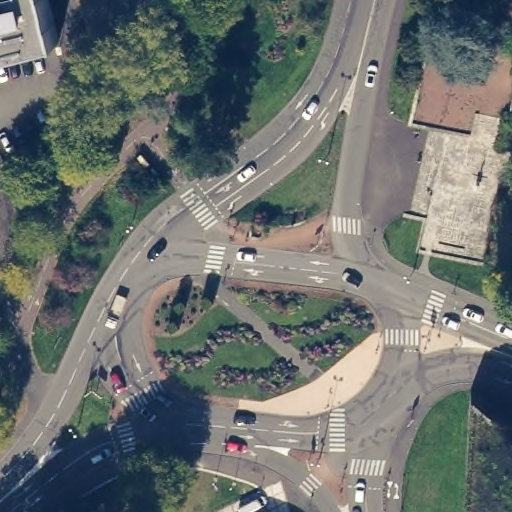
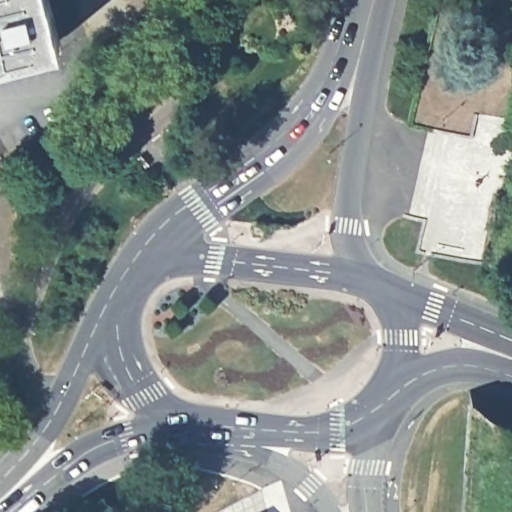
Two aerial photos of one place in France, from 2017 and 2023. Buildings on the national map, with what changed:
unchanged [(59,35),(0,50),(0,0),(51,0),(59,35)]
unchanged [(269,512),(260,512),(268,508),(269,512)]

